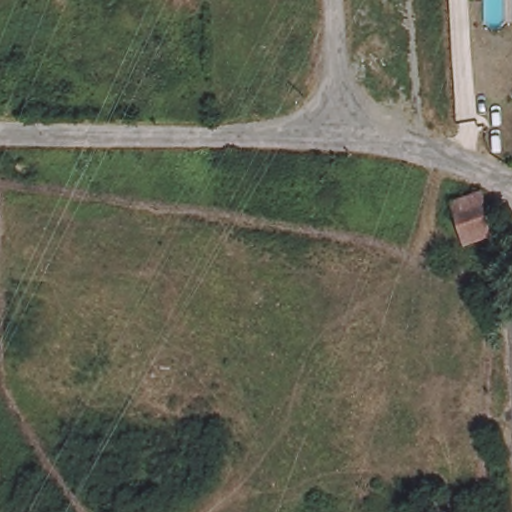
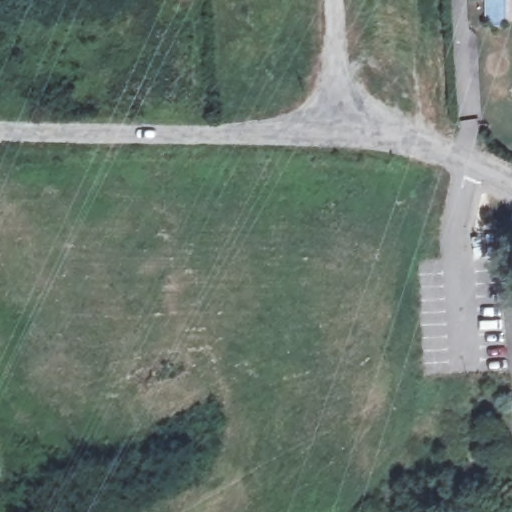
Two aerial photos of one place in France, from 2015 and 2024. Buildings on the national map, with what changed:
demolished [(468,245),(465,231),(455,199),(484,190),(498,235),(468,245)]

